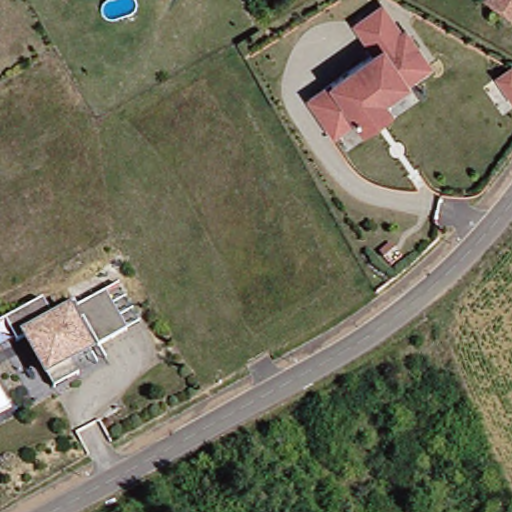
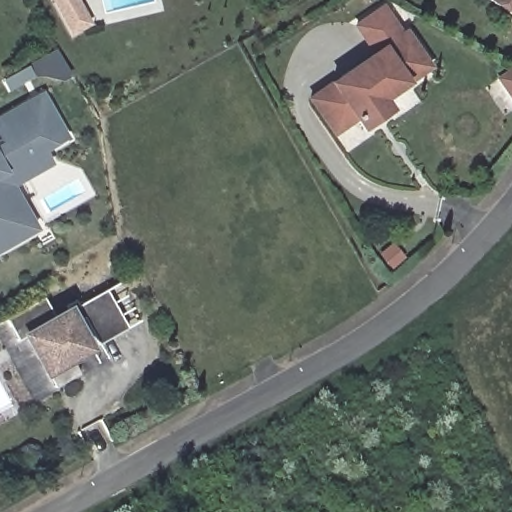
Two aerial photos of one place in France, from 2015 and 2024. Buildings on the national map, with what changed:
new [(71,28),(68,23),(56,0),(79,0),(86,13),(89,18),(71,28)]
unchanged [(512,12),(493,0),(512,0),(512,12)]
unchanged [(393,114),(366,132),(358,122),(336,137),(312,102),(378,58),(359,30),(386,12),(405,39),(409,37),(423,57),(433,72),(410,87),(386,103),(393,114)]
new [(1,142),(0,140),(0,116),(43,91),(69,138),(47,153),(53,165),(14,187),(38,230),(0,253),(0,143),(1,142)]
unchanged [(97,366),(89,352),(70,362),(78,376),(53,390),(25,338),(16,343),(4,321),(42,300),(54,321),(67,313),(64,308),(74,303),(77,308),(105,293),(118,286),(140,324),(126,331),(98,347),(105,361),(97,366)]

